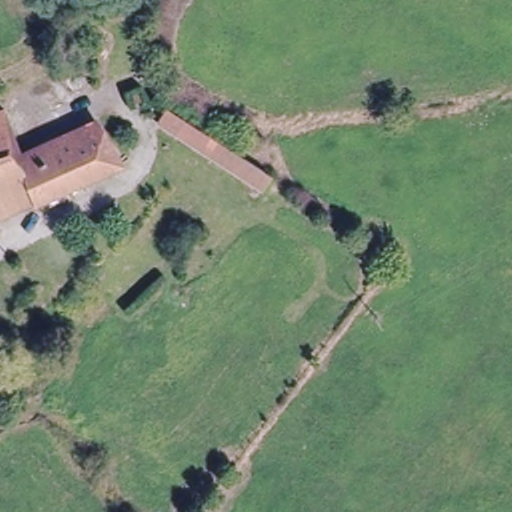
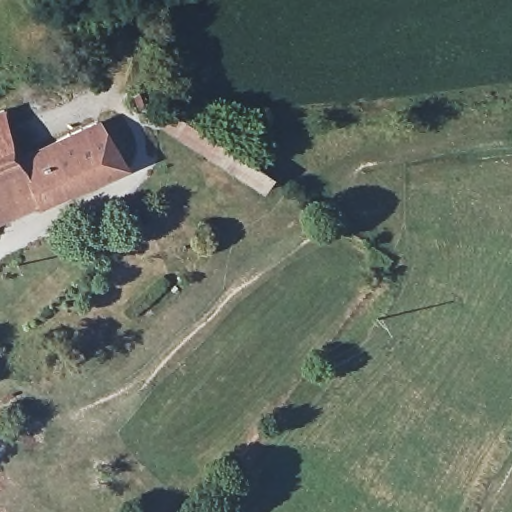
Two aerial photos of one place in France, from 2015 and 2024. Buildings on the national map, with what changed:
unchanged [(23,148),(102,111),(129,164),(41,203),(39,199),(0,217),(0,100),(2,99),(11,120),(23,148)]
unchanged [(265,189),(157,119),(170,104),(275,172),(265,189)]

